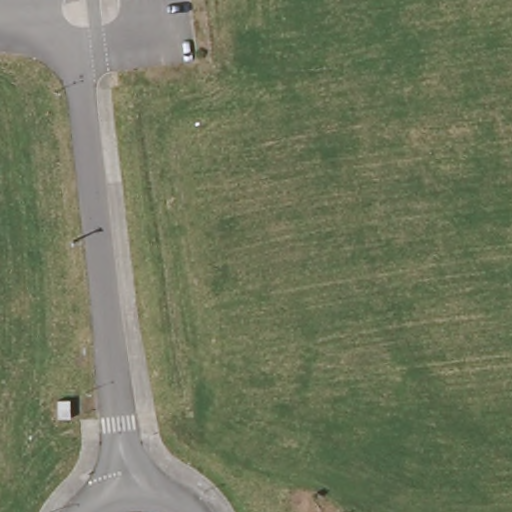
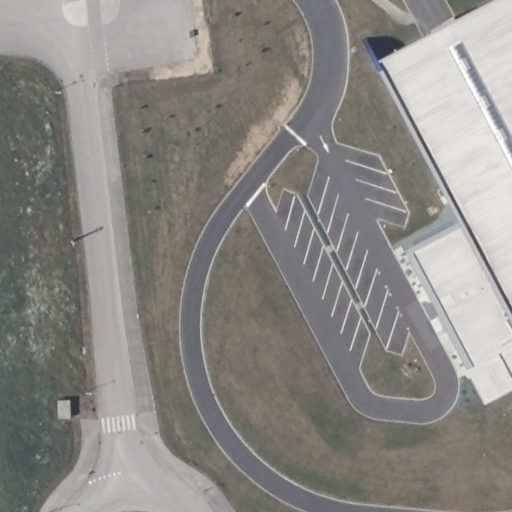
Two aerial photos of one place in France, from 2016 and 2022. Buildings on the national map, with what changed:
new [(405,252),(409,249),(459,224),(373,60),(488,0),(512,0),(512,382),(486,396),(512,382),(512,388),(484,403),(405,252)]

